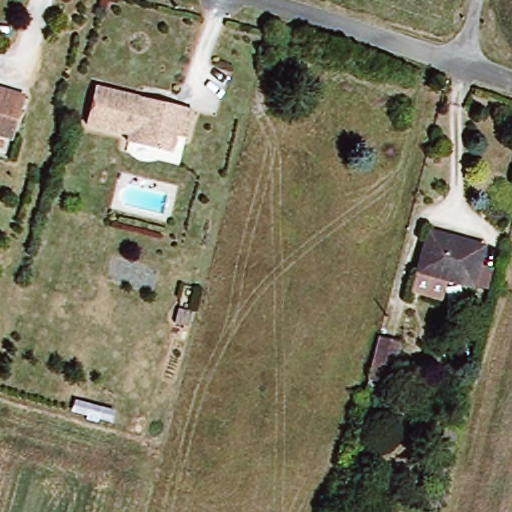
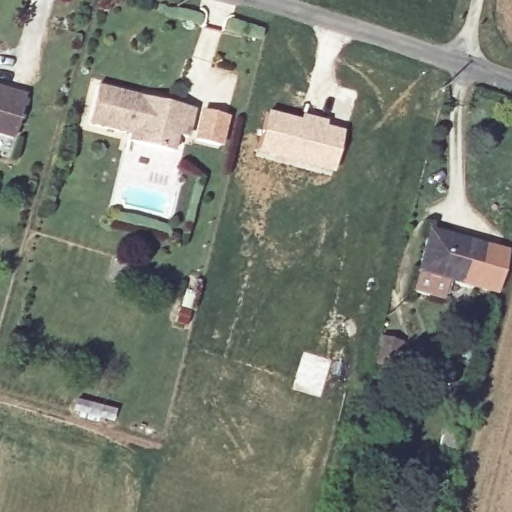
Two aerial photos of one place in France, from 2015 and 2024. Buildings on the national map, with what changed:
unchanged [(187,136),(177,135),(172,151),(128,140),(130,133),(88,122),(98,85),(140,96),(175,105),(193,109),(187,136)]
unchanged [(15,93),(32,98),(19,140),(0,135),(0,89),(15,93)]
new [(200,110),(228,116),(221,145),(192,139),(200,110)]
new [(265,110),(298,119),(300,113),(326,120),(324,125),(343,130),(331,175),(254,155),(265,110)]
unchanged [(415,293),(421,275),(431,240),(433,231),(455,237),(487,246),(475,291),(452,283),(446,302),(415,293)]
unchanged [(409,348),(397,386),(381,383),(391,344),(409,348)]

